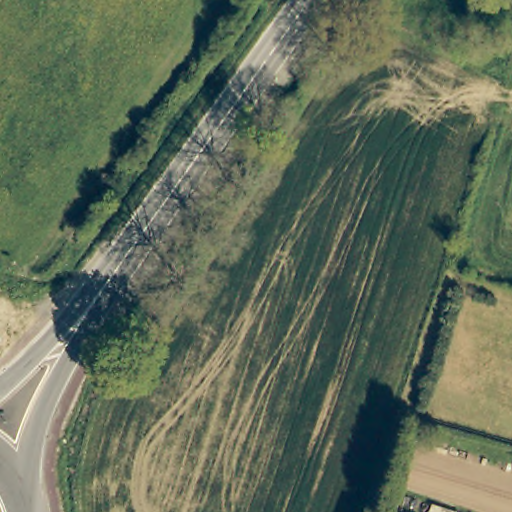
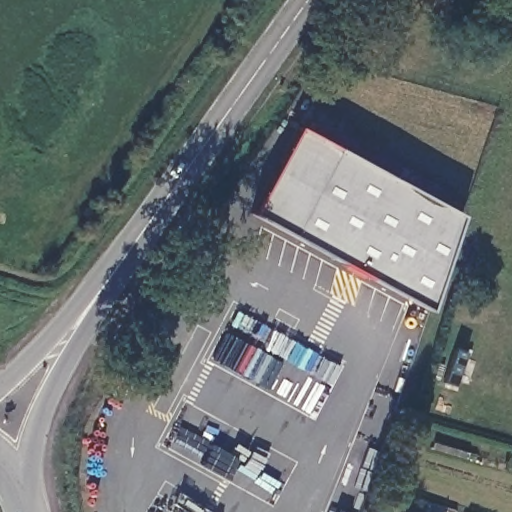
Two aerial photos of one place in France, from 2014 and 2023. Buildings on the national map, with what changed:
new [(430,308),(252,212),(298,126),(462,215),(430,308)]

